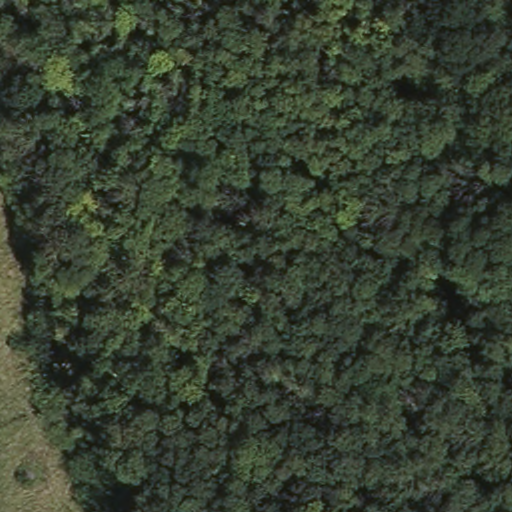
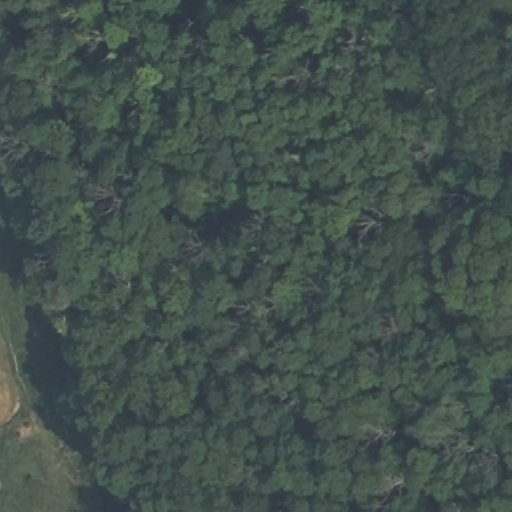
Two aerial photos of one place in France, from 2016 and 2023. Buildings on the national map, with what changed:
unchanged [(81,405),(90,429),(64,438),(55,414),(81,405)]

